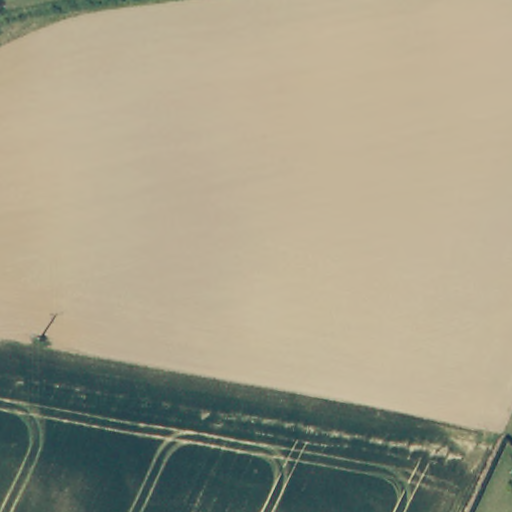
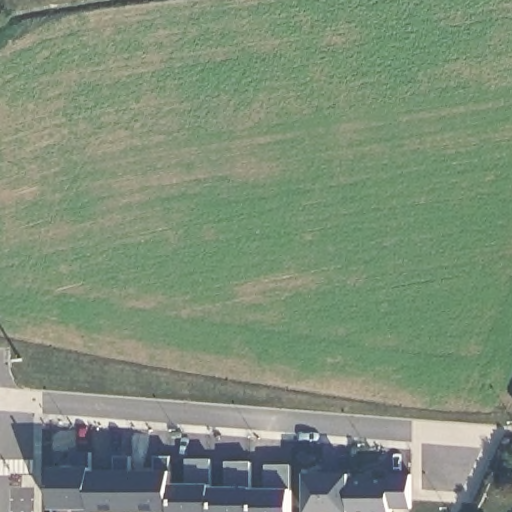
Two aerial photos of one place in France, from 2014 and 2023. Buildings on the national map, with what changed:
new [(173,512),(92,511),(92,507),(52,507),(51,467),(91,467),(91,471),(171,471),(171,483),(290,488),(291,512),(172,512),(173,512)]
new [(349,479),(390,480),(390,474),(410,474),(410,508),(391,508),(390,512),(306,512),(306,472),(349,472),(349,479)]

